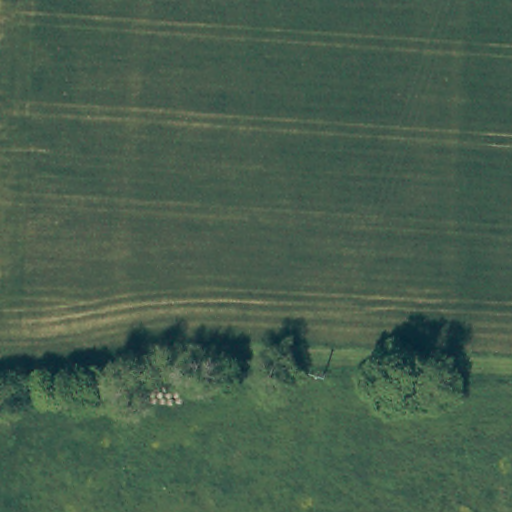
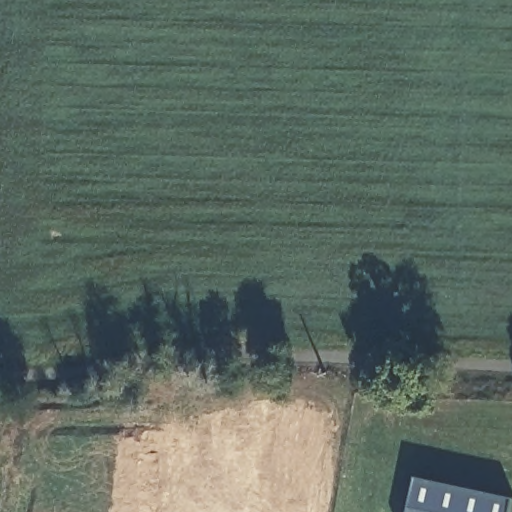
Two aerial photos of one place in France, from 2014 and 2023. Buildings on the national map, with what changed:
new [(410,512),(417,477),(512,497),(512,510),(512,512),(410,512)]

